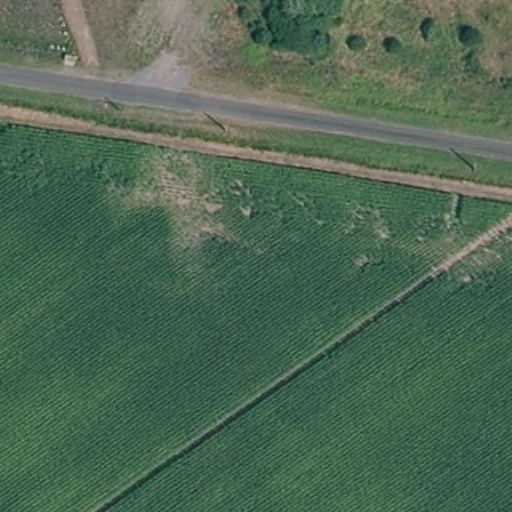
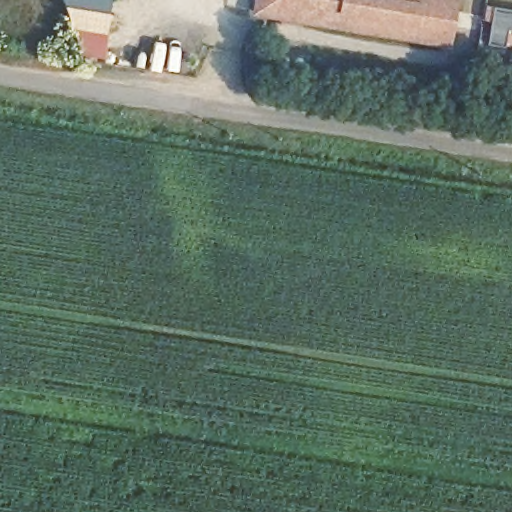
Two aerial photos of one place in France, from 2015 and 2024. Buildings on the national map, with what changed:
new [(105,60),(60,51),(62,22),(60,9),(59,0),(111,0),(105,60)]
new [(450,46),(252,15),(254,0),(457,0),(450,46)]
new [(500,44),(487,42),(493,6),(512,9),(512,29),(502,27),(500,44)]

